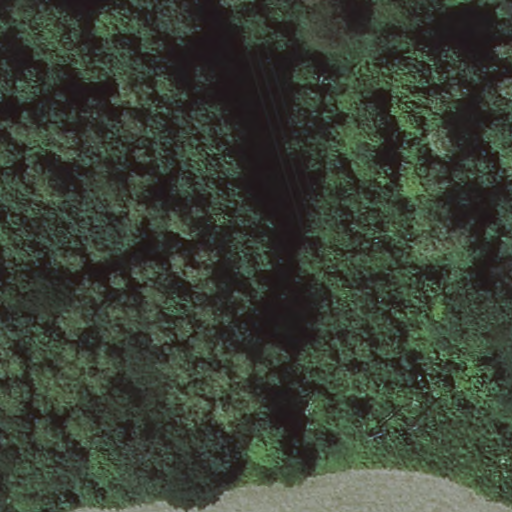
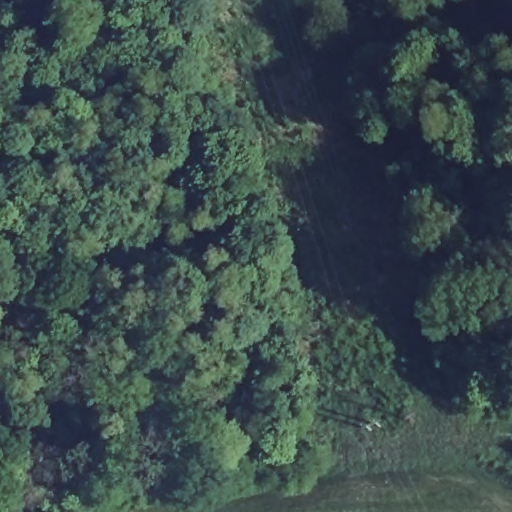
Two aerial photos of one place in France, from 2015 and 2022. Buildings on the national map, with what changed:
[]

